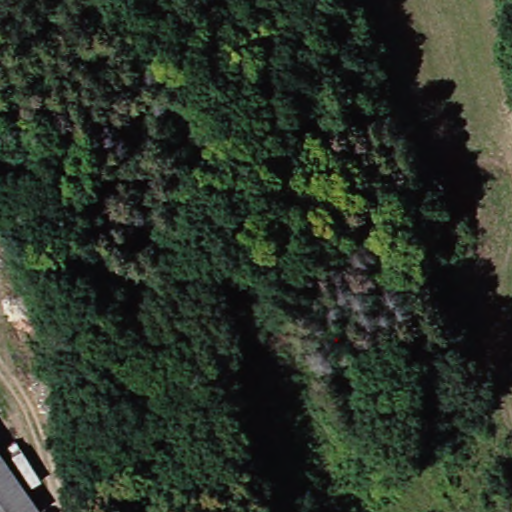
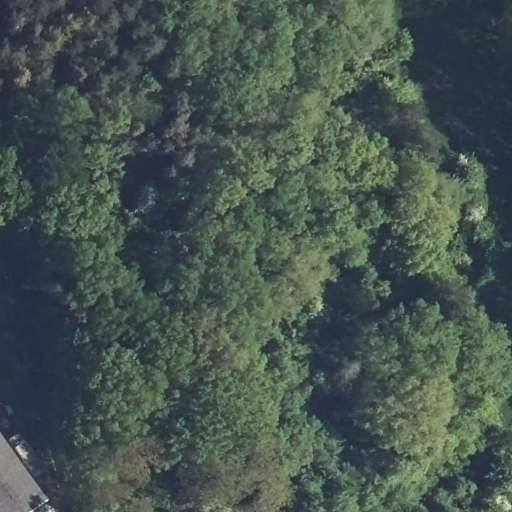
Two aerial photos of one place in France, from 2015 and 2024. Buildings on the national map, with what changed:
unchanged [(34,503),(22,512),(0,512),(0,455),(34,503)]

